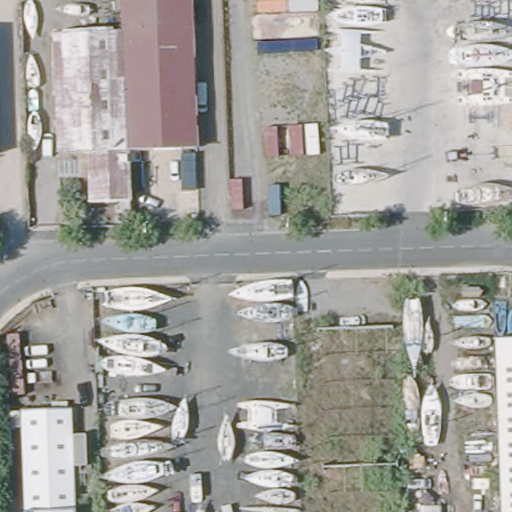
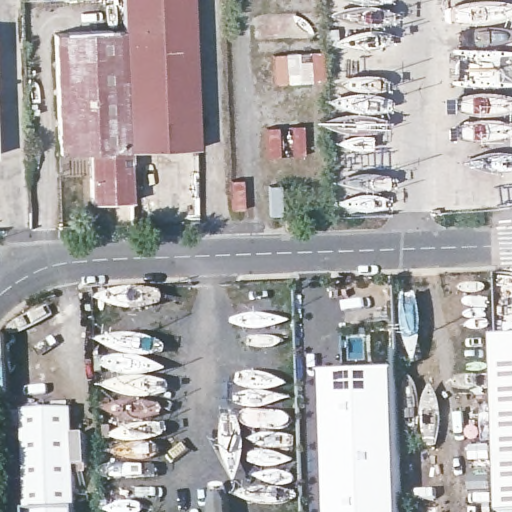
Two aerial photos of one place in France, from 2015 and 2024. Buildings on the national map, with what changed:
unchanged [(199,144),(129,147),(125,24),(124,0),(194,0),(199,144)]
unchanged [(129,147),(131,197),(89,198),(87,148),(57,149),(52,27),(125,24),(129,147)]
demolished [(0,157),(0,102),(2,156),(0,157)]
unchanged [(504,512),(498,336),(512,336),(512,512),(504,512)]
new [(401,512),(324,512),(320,374),(396,370),(401,512)]
unchanged [(23,411),(75,409),(77,459),(78,512),(26,512),(25,459),(23,411)]

